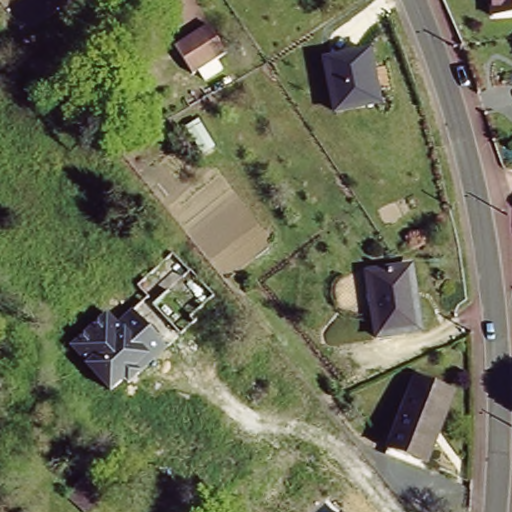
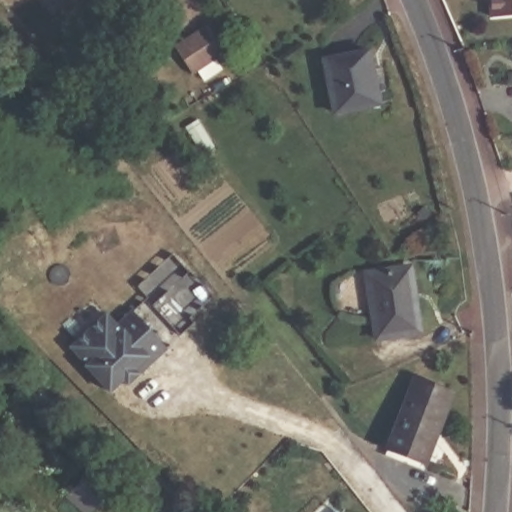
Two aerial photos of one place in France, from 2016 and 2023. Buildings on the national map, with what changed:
unchanged [(490,0),(512,0),(512,14),(491,15),(490,0)]
unchanged [(172,44),(205,21),(222,47),(190,69),(172,44)]
unchanged [(324,54),(371,45),(382,104),(334,113),(324,54)]
unchanged [(199,121),(215,148),(204,154),(188,128),(199,121)]
unchanged [(107,313),(115,323),(145,297),(135,285),(168,249),(210,299),(167,349),(113,396),(70,347),(107,313)]
unchanged [(415,268),(417,334),(372,335),(369,269),(415,268)]
unchanged [(417,459),(384,445),(414,374),(452,389),(435,429),(422,461),(417,459)]
unchanged [(64,490),(93,462),(110,479),(80,508),(64,490)]

